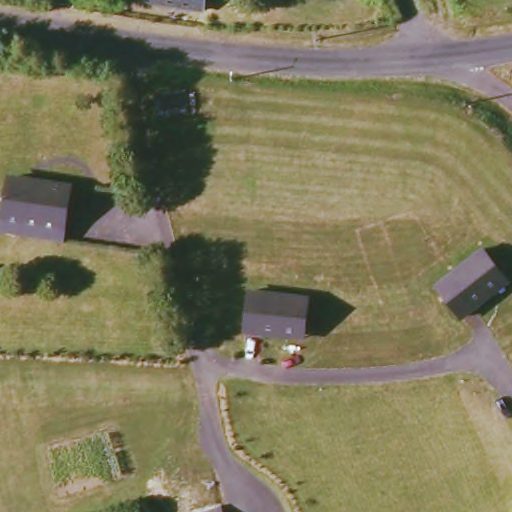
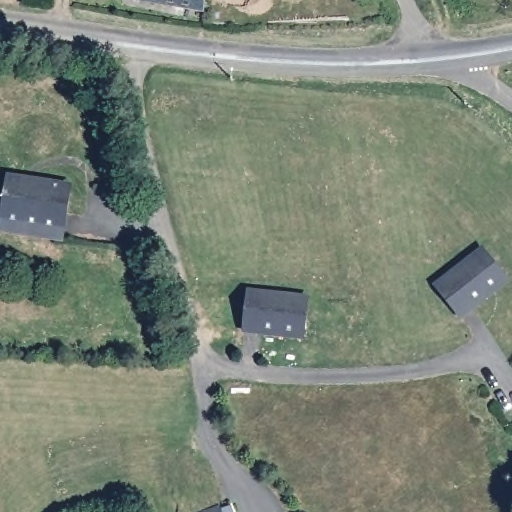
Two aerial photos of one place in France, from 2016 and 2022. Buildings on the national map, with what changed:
unchanged [(206,12),(139,2),(139,0),(208,0),(206,12)]
unchanged [(1,235),(3,224),(9,182),(65,190),(59,233),(58,242),(1,235)]
unchanged [(484,300),(459,321),(433,289),(479,252),(502,280),(505,285),(484,300)]
unchanged [(276,338),(243,335),(246,295),(306,301),(302,336),(301,341),(276,338)]
unchanged [(221,512),(206,512),(218,506),(221,512)]

